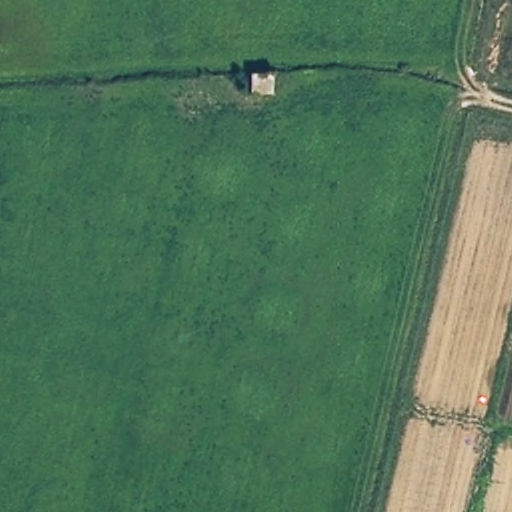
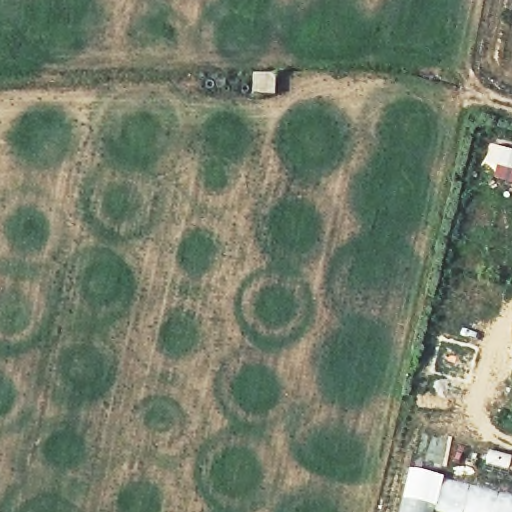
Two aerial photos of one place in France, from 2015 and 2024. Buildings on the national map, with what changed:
unchanged [(275,75),(272,99),(247,99),(250,75),(275,75)]
new [(421,432),(450,441),(433,512),(401,512),(421,432)]
new [(512,496),(512,512),(433,512),(442,478),(512,496)]

